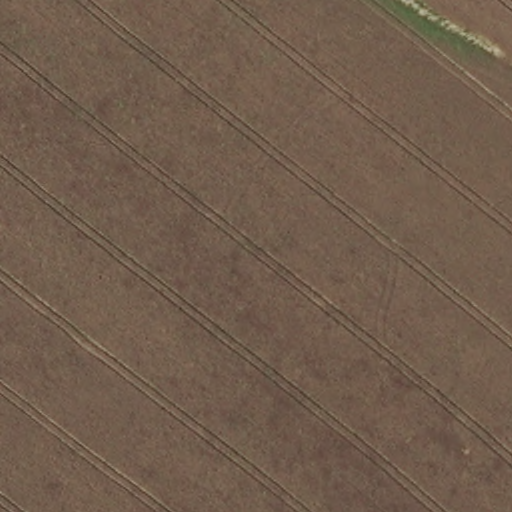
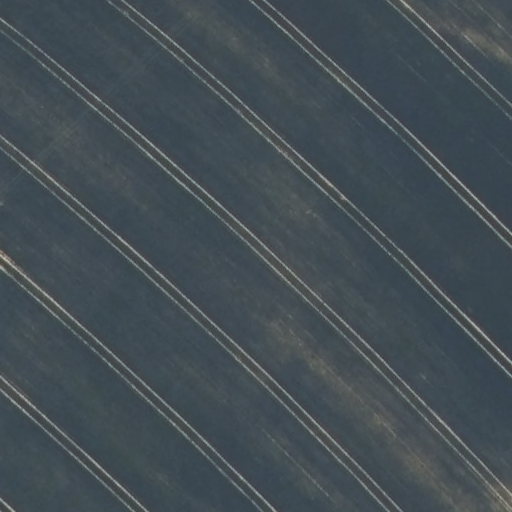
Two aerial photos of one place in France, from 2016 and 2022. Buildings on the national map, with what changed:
[]

